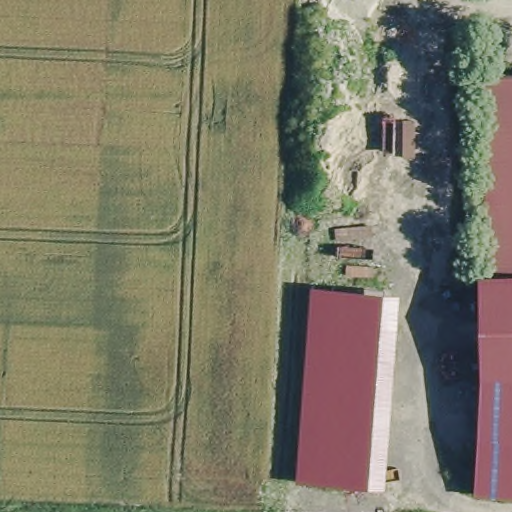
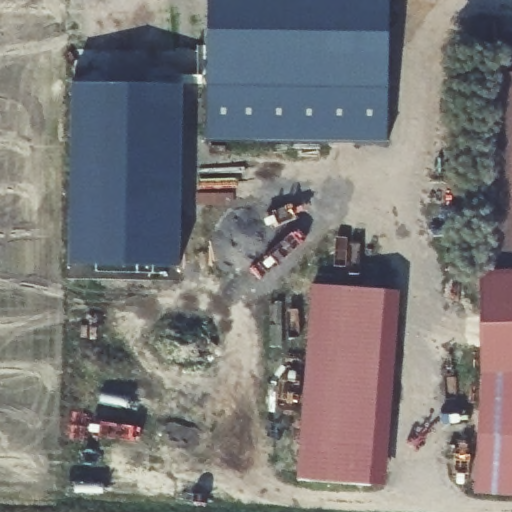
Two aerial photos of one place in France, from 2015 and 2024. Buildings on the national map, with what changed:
new [(211,147),(213,0),(389,0),(392,148),(211,147)]
unchanged [(487,274),(485,71),(512,71),(512,273),(487,274)]
new [(70,84),(182,86),(179,267),(68,264),(70,84)]
unchanged [(487,274),(512,273),(512,496),(475,493),(481,368),(477,268),(487,268),(487,274)]
unchanged [(399,291),(387,487),(297,480),(312,284),(399,291)]

